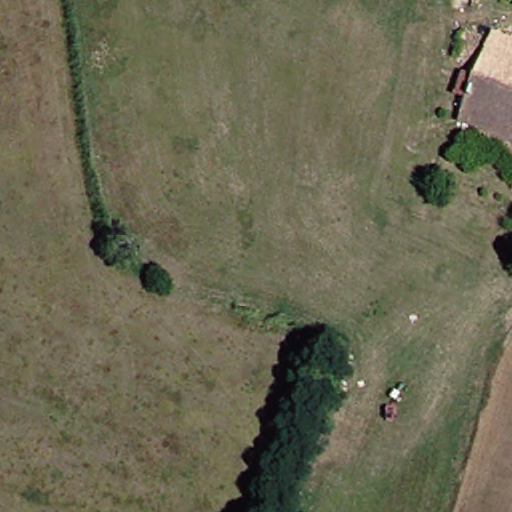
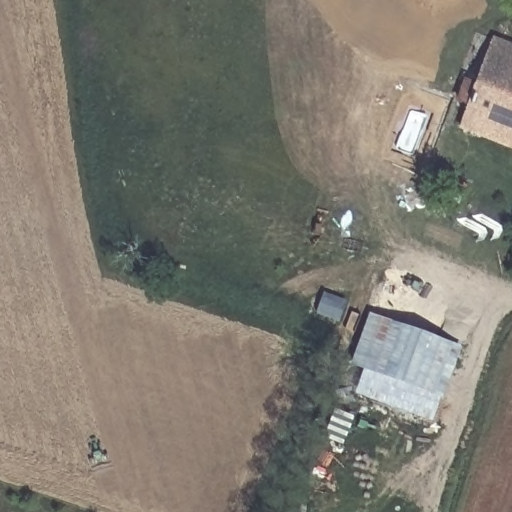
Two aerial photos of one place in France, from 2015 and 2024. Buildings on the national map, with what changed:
unchanged [(455,114),(460,101),(449,97),(457,79),(467,82),(477,56),(485,39),(512,47),(512,135),(455,114)]
unchanged [(450,126),(455,114),(512,135),(512,148),(450,126)]
new [(432,426),(355,399),(362,370),(351,366),(368,315),(461,346),(432,426)]

